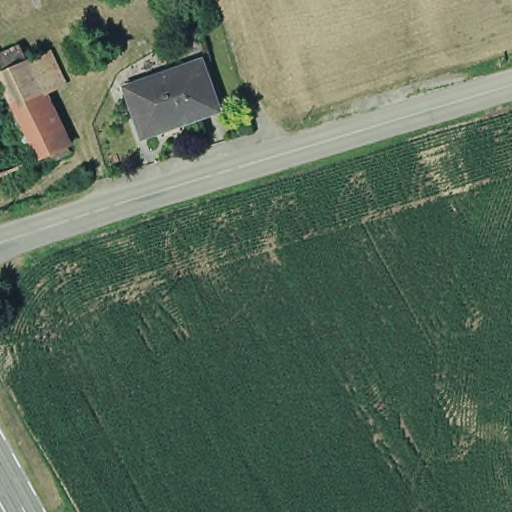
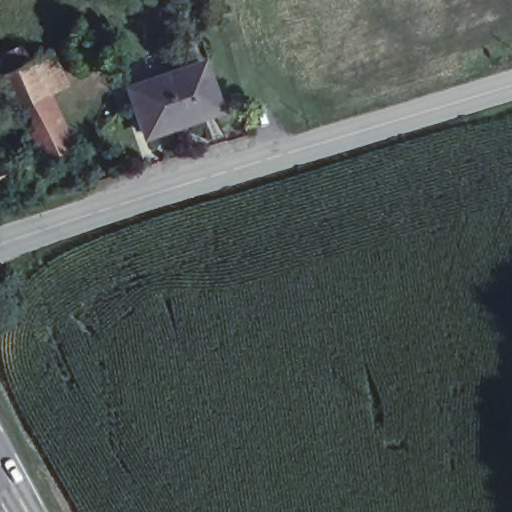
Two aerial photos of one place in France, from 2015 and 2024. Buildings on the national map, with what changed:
unchanged [(66,43),(83,35),(93,59),(77,66),(66,43)]
unchanged [(14,43),(26,62),(46,51),(65,87),(46,99),(65,151),(33,166),(0,93),(0,55),(14,43)]
unchanged [(219,109),(179,122),(178,117),(167,121),(168,126),(146,135),(131,92),(129,86),(148,80),(202,61),(219,109)]

